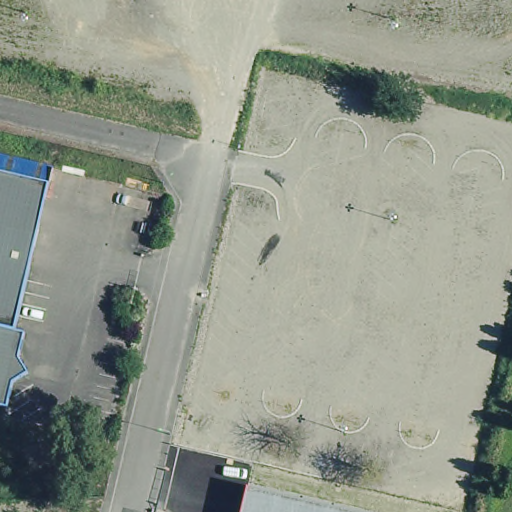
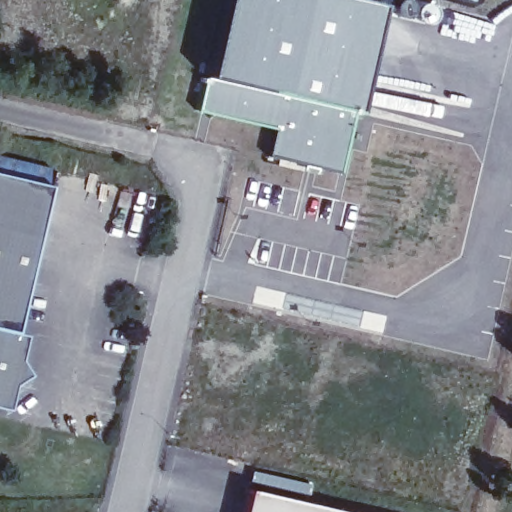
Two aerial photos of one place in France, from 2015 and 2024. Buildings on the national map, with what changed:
new [(221,0),(377,0),(369,44),(352,109),(271,92),(202,75),(221,0)]
new [(202,75),(271,92),(352,109),(337,172),(266,154),(271,129),(194,110),(202,75)]
unchanged [(51,179),(40,227),(0,218),(0,166),(51,179)]
unchanged [(40,227),(17,325),(0,321),(0,218),(40,227)]
unchanged [(17,325),(26,327),(20,352),(30,367),(14,377),(9,402),(0,400),(0,321),(17,325)]
unchanged [(246,493),(246,489),(347,512),(244,512),(248,494),(246,493)]

